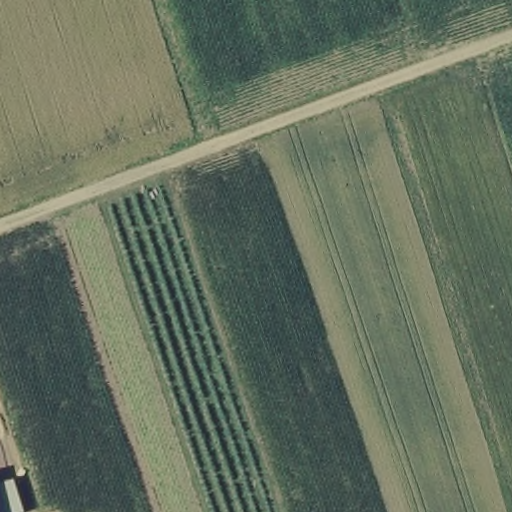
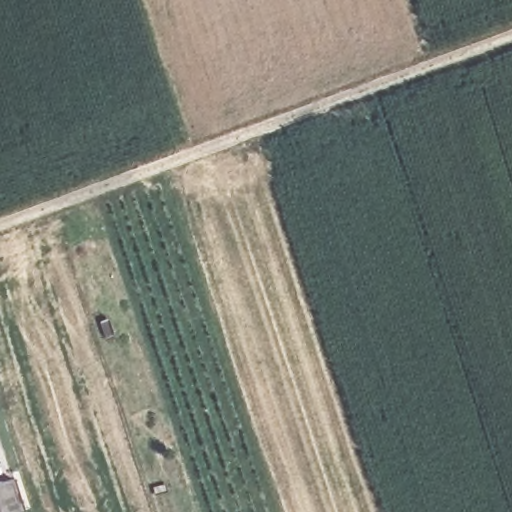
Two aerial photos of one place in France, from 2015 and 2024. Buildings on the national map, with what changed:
unchanged [(22,511),(20,512),(0,512),(0,483),(12,480),(22,511)]

